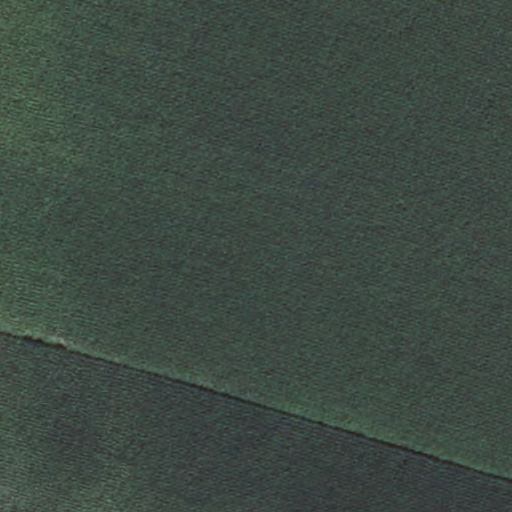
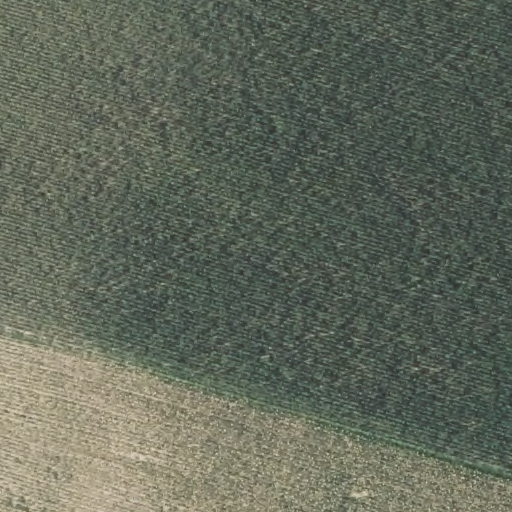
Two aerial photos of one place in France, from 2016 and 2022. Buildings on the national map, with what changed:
[]

